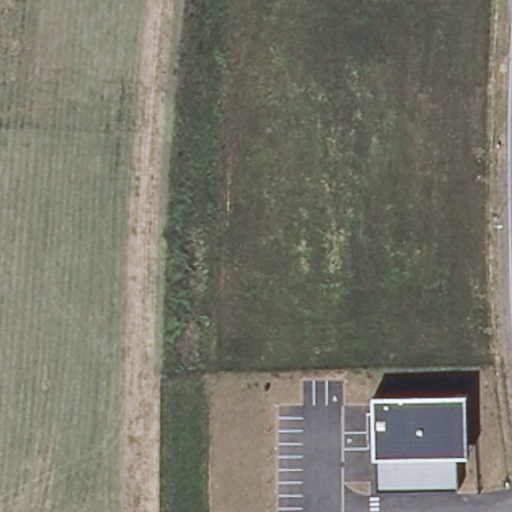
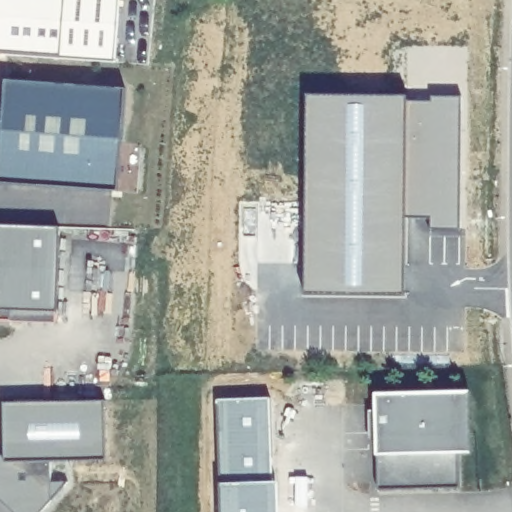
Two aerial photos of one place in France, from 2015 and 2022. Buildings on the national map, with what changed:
new [(0,52),(0,0),(118,0),(114,61),(0,52)]
unchanged [(6,81),(126,90),(118,190),(0,182),(0,157),(6,81)]
new [(308,98),(409,99),(409,104),(433,104),(432,100),(462,100),(461,233),(432,234),(432,236),(431,236),(431,222),(408,222),(407,300),(306,299),(308,98)]
unchanged [(13,324),(0,324),(0,227),(61,230),(58,315),(58,326),(13,324)]
unchanged [(470,454),(461,455),(461,487),(378,488),(379,456),(378,396),(470,395),(470,454)]
new [(269,400),(271,484),(276,483),(277,512),(220,512),(216,401),(269,400)]
new [(5,453),(5,403),(105,401),(108,458),(50,461),(50,484),(70,482),(40,512),(15,512),(0,498),(0,459),(5,453)]

